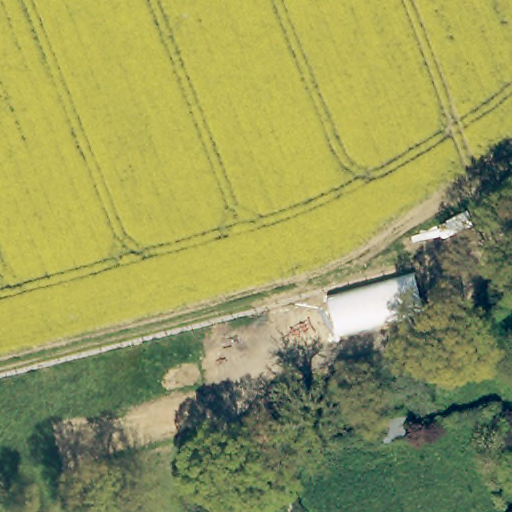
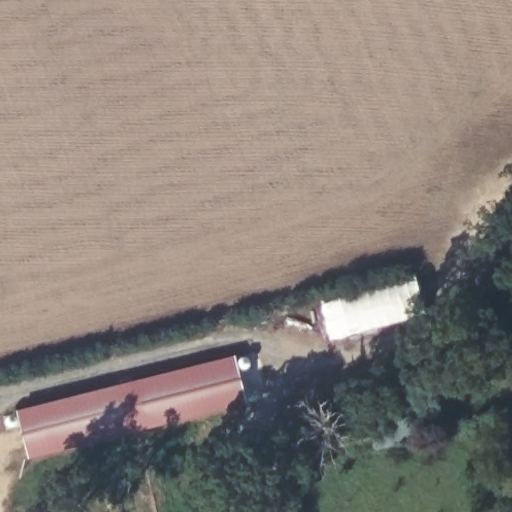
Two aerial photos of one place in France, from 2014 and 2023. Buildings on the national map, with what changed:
unchanged [(426,313),(340,336),(331,300),(418,278),(426,313)]
new [(248,402),(28,457),(17,410),(235,355),(248,402)]
unchanged [(382,445),(378,425),(416,417),(420,437),(382,445)]

